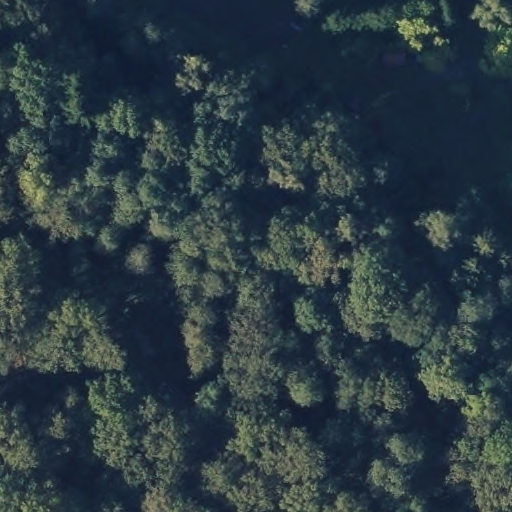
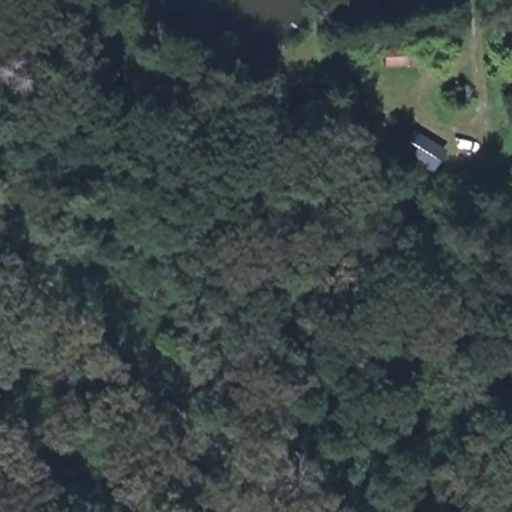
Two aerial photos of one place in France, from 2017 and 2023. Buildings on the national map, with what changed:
unchanged [(423,68),(378,71),(378,45),(422,47),(423,68)]

